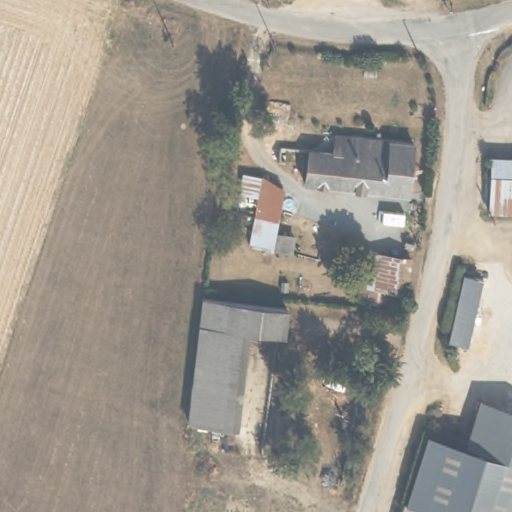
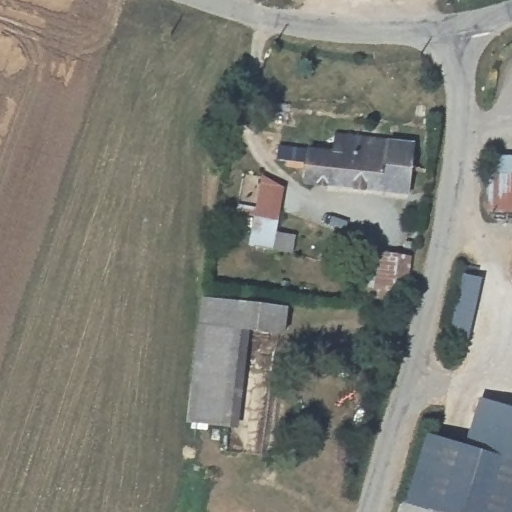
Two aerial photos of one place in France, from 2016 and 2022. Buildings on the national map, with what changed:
unchanged [(412,185),(407,198),(322,185),(325,167),(293,162),(297,147),(349,156),(352,137),(417,147),(414,168),(412,180),(412,185)]
unchanged [(512,154),(512,178),(486,177),(489,154),(512,154)]
unchanged [(293,235),(292,252),(249,244),(254,212),(234,210),(241,168),(261,171),(280,187),(273,231),(293,235)]
unchanged [(512,213),(480,212),(486,177),(512,178),(512,213)]
unchanged [(414,255),(407,305),(371,302),(377,252),(414,255)]
unchanged [(201,298),(289,307),(287,341),(243,336),(207,332),(198,332),(201,298)]
unchanged [(243,336),(231,432),(192,428),(189,428),(198,332),(207,332),(243,336)]
unchanged [(480,402),(512,412),(512,461),(467,447),(480,402)]
unchanged [(426,437),(467,447),(512,461),(512,512),(417,512),(402,507),(426,437)]
unchanged [(417,512),(401,512),(402,507),(417,512)]

